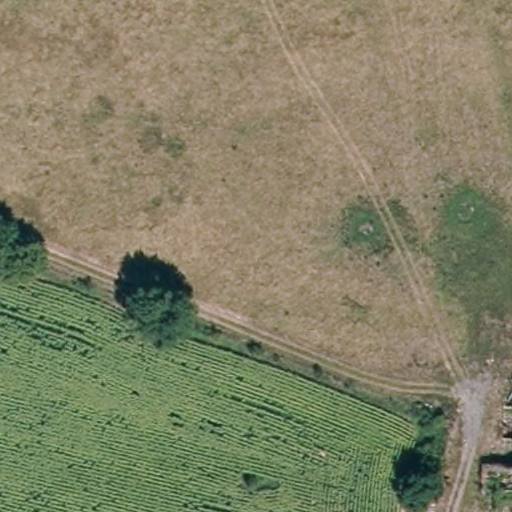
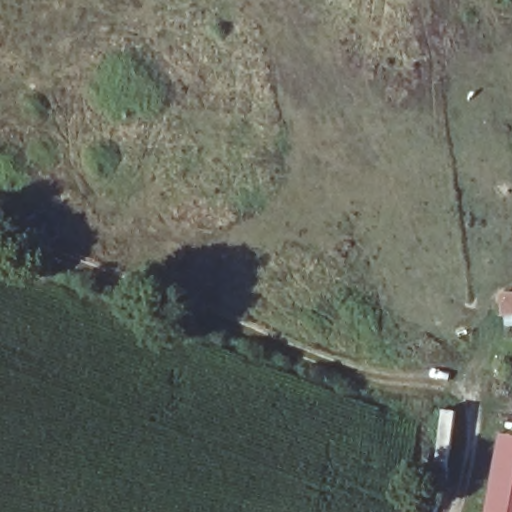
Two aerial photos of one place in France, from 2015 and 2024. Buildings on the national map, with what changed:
demolished [(512,385),(512,442),(502,440),(508,385),(512,385)]
new [(487,512),(502,432),(512,434),(512,512),(487,512)]
demolished [(498,512),(500,493),(486,492),(488,463),(512,466),(512,512),(498,512)]

